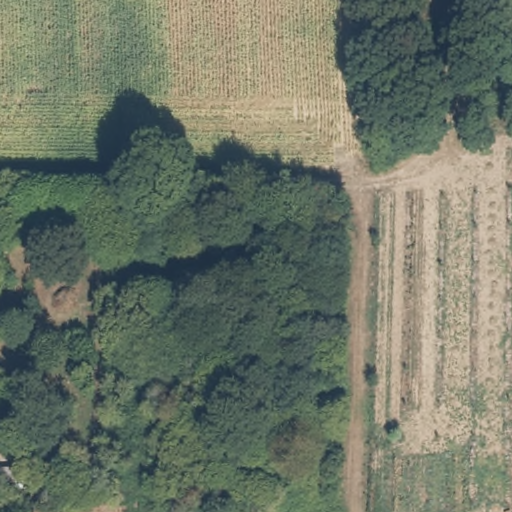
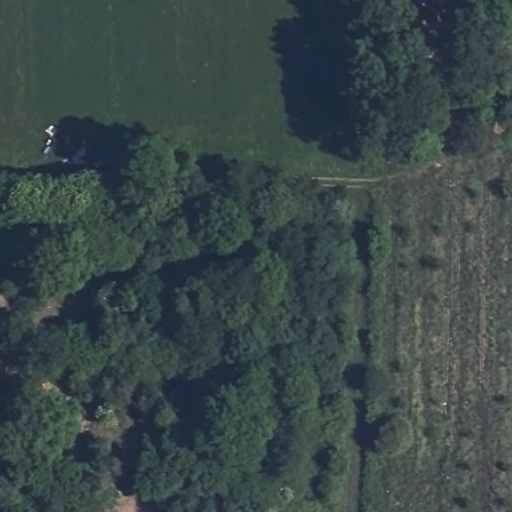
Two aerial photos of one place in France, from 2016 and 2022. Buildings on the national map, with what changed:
unchanged [(25,487),(0,485),(0,467),(25,467),(25,487)]

